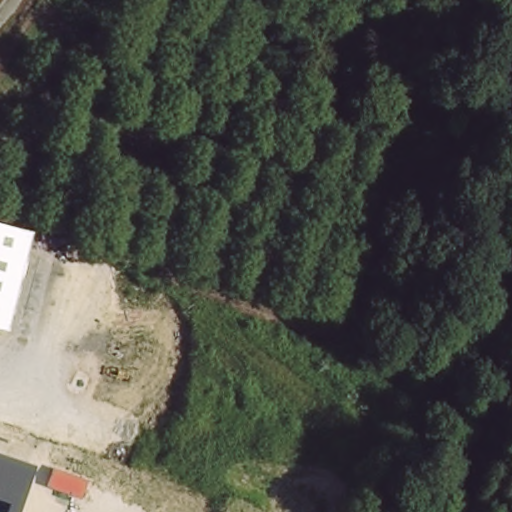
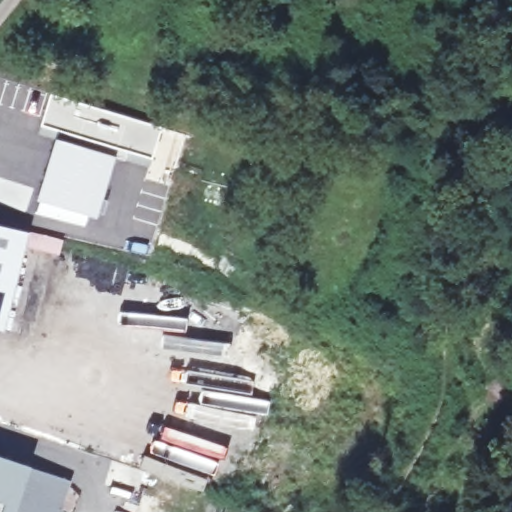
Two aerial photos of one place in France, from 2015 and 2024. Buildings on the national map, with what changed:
new [(188,140),(177,170),(126,155),(104,224),(41,207),(60,131),(43,129),(52,95),(188,140)]
unchanged [(0,224),(29,232),(4,330),(0,328),(0,224)]
unchanged [(15,512),(0,512),(0,455),(31,465),(15,512)]
new [(71,479),(60,512),(15,512),(31,465),(71,479)]

